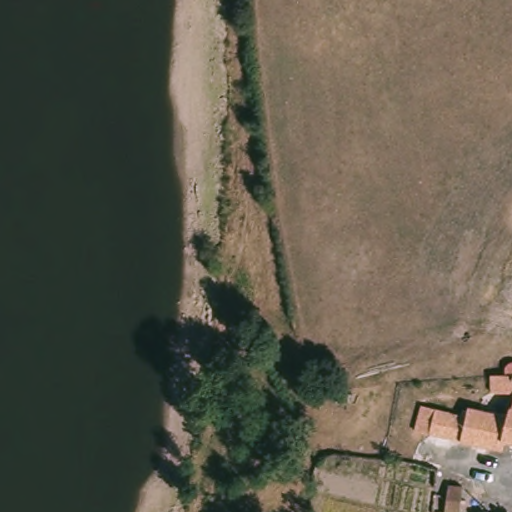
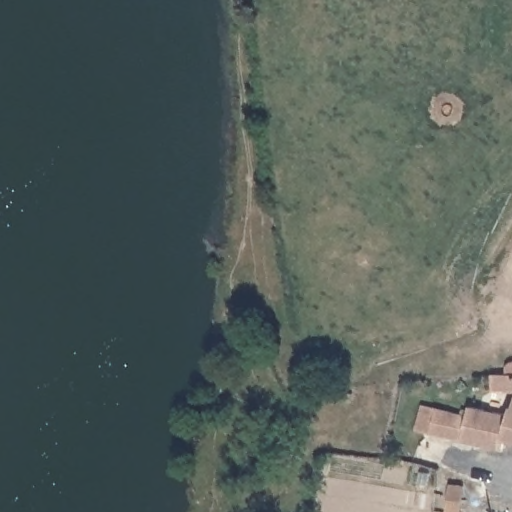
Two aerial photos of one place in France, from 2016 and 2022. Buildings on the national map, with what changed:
unchanged [(501,432),(499,444),(411,427),(415,398),(460,407),(462,398),(485,403),(490,369),(500,371),(503,365),(505,362),(507,361),(510,360),(512,360),(512,435),(501,432)]
unchanged [(441,484),(456,484),(455,512),(439,512),(441,484)]

